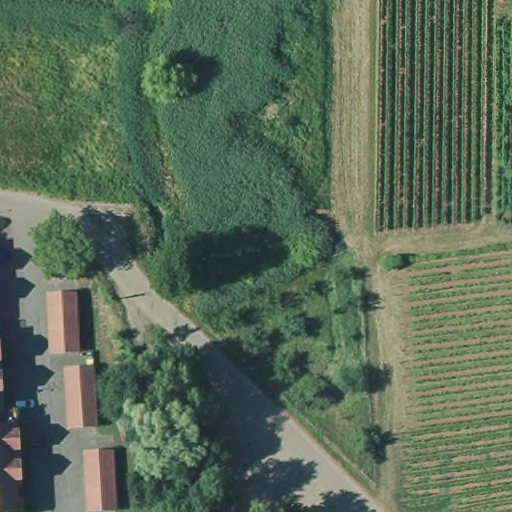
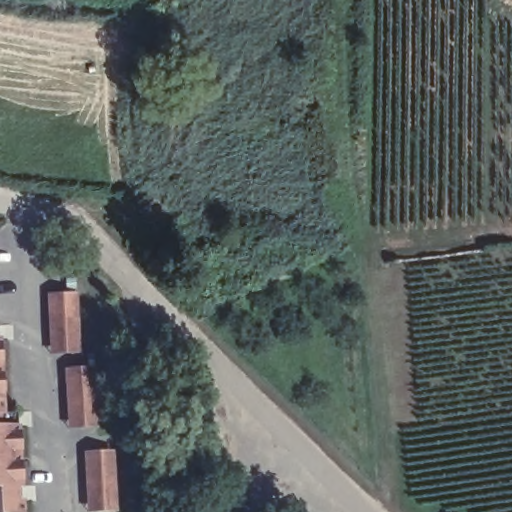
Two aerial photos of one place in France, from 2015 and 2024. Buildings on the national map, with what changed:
unchanged [(77,291),(79,354),(49,355),(47,292),(77,291)]
unchanged [(5,337),(9,413),(23,412),(24,426),(28,512),(0,512),(0,324),(4,324),(5,337)]
unchanged [(95,367),(97,428),(66,429),(64,368),(95,367)]
unchanged [(113,450),(115,510),(86,512),(84,452),(113,450)]

